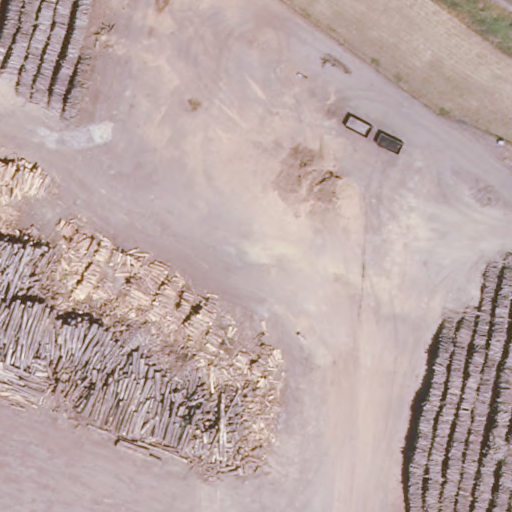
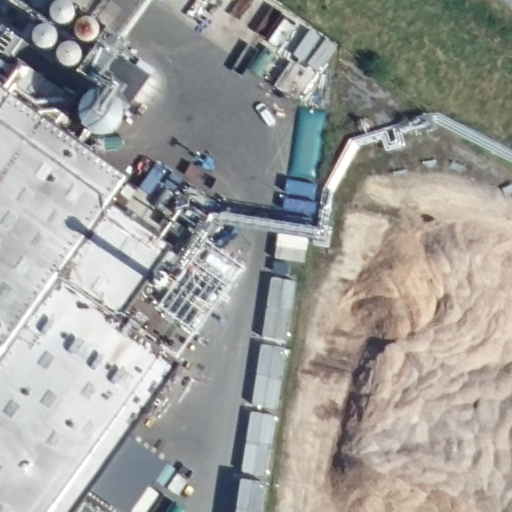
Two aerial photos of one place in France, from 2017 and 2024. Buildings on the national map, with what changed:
new [(23,2),(18,5),(16,5),(13,5),(10,2),(10,0),(24,0),(23,2)]
new [(25,2),(29,0),(34,0),(36,1),(38,3),(40,6),(40,10),(36,14),(35,15),(30,16),(27,15),(25,13),(24,10),(24,7),(25,2)]
new [(47,12),(51,10),(56,10),(62,12),(65,16),(66,20),(65,25),(63,29),(62,30),(56,32),(51,32),(47,30),(44,26),(43,22),(43,20),(45,15),(47,12)]
new [(76,27),(81,27),(86,29),(90,33),(91,38),(90,43),(87,47),(85,50),(77,51),(72,50),(69,46),(67,43),(66,38),(67,33),(71,29),(76,27)]
new [(25,47),(25,45),(27,39),(30,36),(35,35),(41,35),(45,38),(48,42),(49,47),(47,52),(44,56),(41,58),(35,59),(30,57),(27,55),(25,50),(25,47)]
new [(48,63),(50,58),(53,54),(56,52),(63,52),(67,54),(70,56),(72,60),(73,65),(71,70),(66,75),(63,76),(56,75),(52,72),(49,68),(48,63)]
new [(113,64),(142,85),(123,112),(95,92),(113,64)]
new [(107,210),(170,255),(118,327),(179,371),(81,507),(88,512),(0,512),(0,95),(125,185),(107,210)]
new [(161,468),(131,512),(108,512),(88,497),(127,443),(161,468)]

